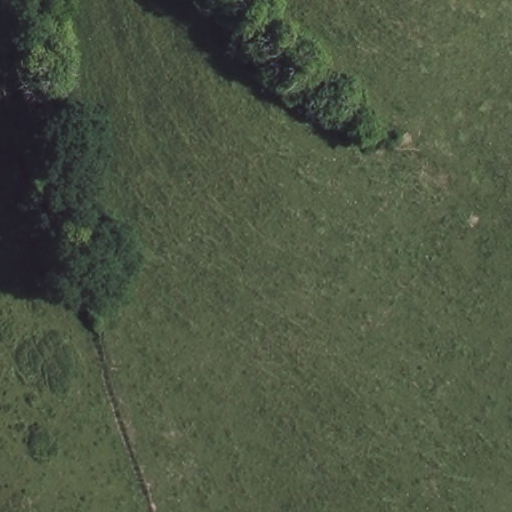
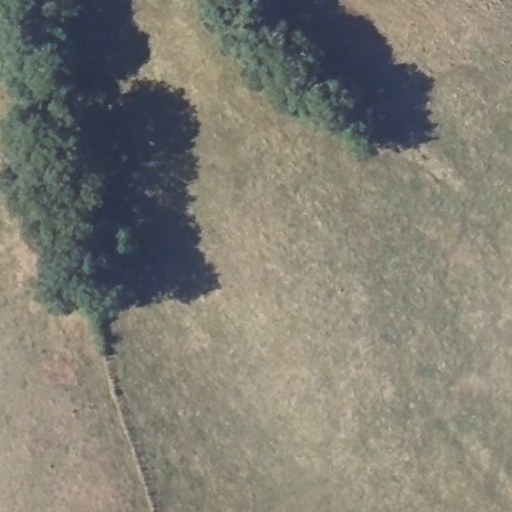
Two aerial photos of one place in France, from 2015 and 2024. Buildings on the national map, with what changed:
[]

